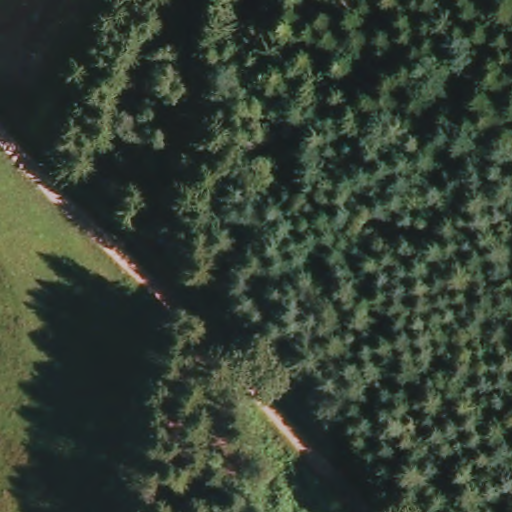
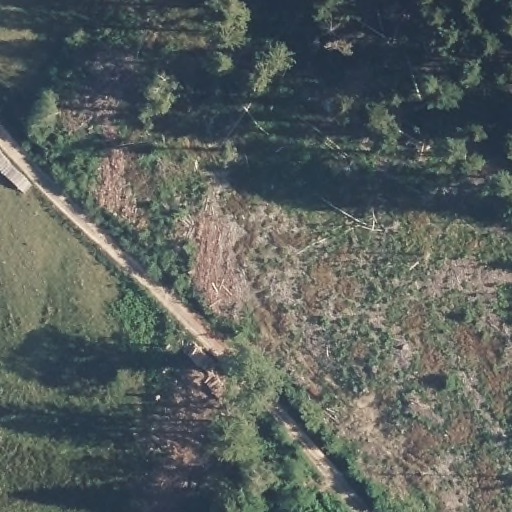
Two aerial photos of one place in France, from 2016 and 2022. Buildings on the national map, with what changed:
[]

